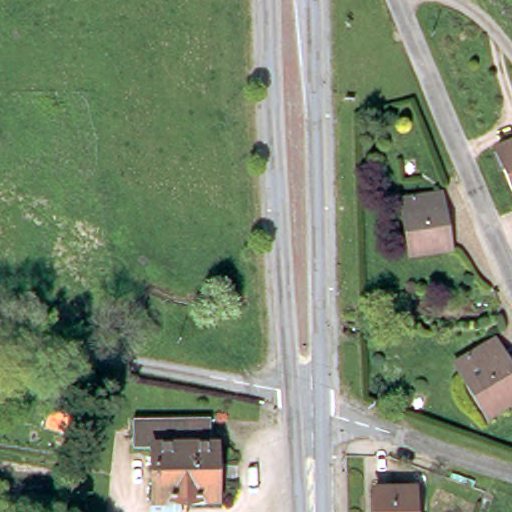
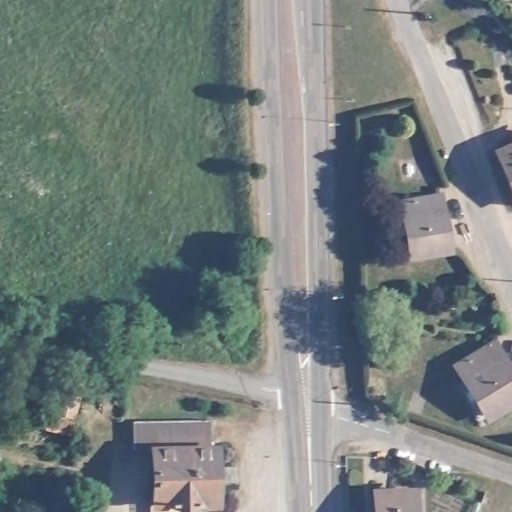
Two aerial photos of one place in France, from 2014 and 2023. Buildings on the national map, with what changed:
unchanged [(494,150),(512,142),(512,193),(494,150)]
unchanged [(411,256),(405,215),(402,198),(438,193),(440,210),(445,252),(411,256)]
unchanged [(485,417),(463,379),(454,364),(490,343),(499,359),(512,382),(512,402),(485,417)]
unchanged [(136,462),(135,435),(211,433),(218,433),(220,512),(157,512),(155,461),(136,462)]
unchanged [(412,487),(412,512),(372,512),(371,488),(412,487)]

